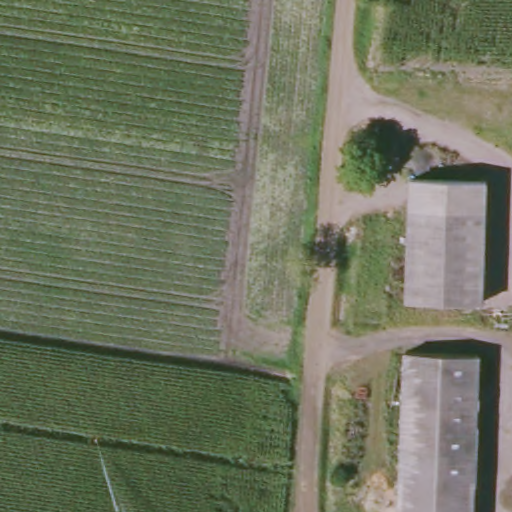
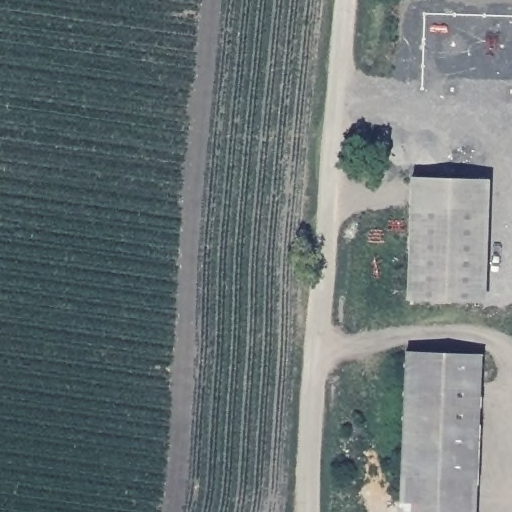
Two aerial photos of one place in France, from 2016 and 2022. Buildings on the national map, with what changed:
unchanged [(413,176),(488,180),(486,211),(411,207),(413,176)]
unchanged [(486,211),(481,302),(406,296),(411,207),(486,211)]
unchanged [(472,512),(397,512),(404,353),(480,358),(472,512)]

